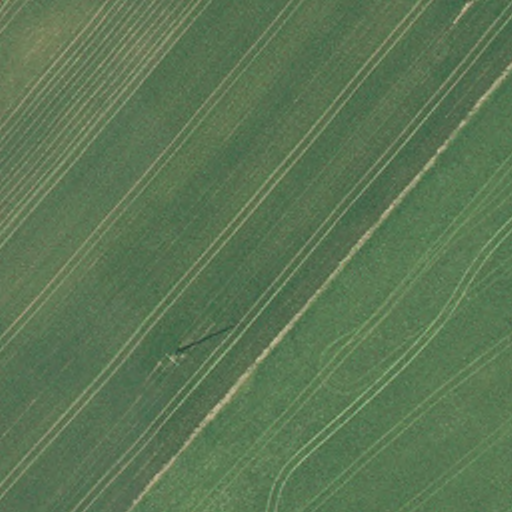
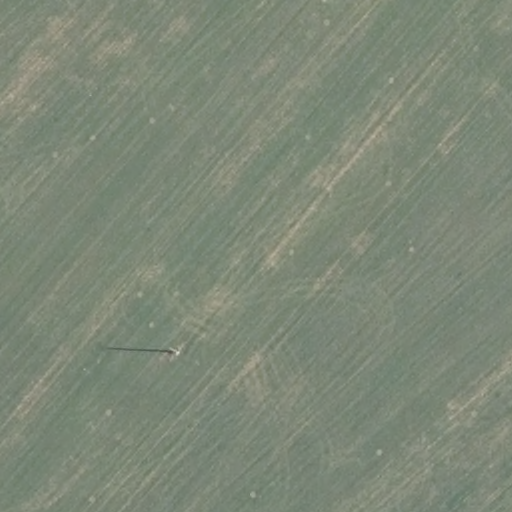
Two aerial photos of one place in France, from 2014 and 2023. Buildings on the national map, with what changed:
[]

